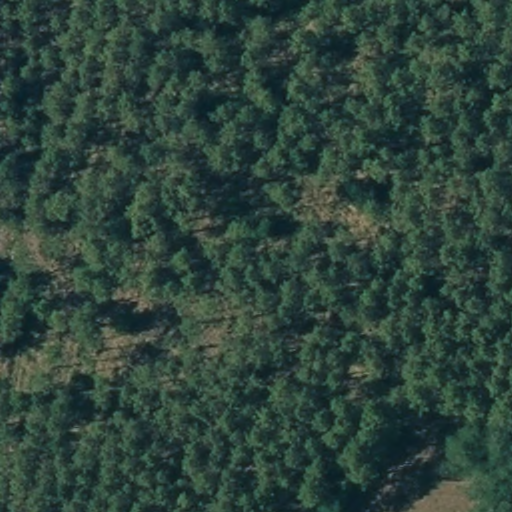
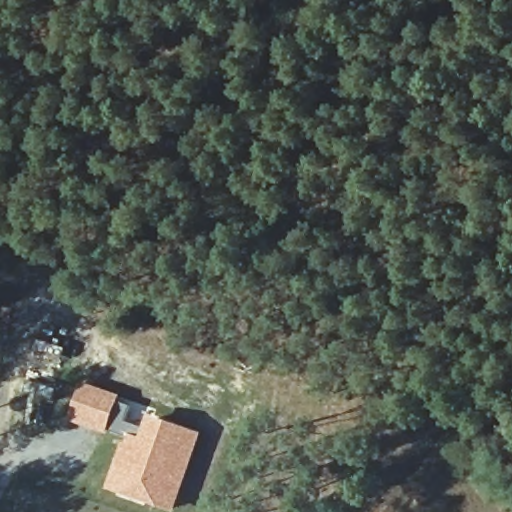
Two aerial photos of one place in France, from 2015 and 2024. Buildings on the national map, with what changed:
new [(117,396),(116,400),(130,406),(125,421),(150,429),(153,420),(184,431),(169,474),(184,480),(172,510),(111,489),(131,438),(75,420),(86,386),(117,396)]

